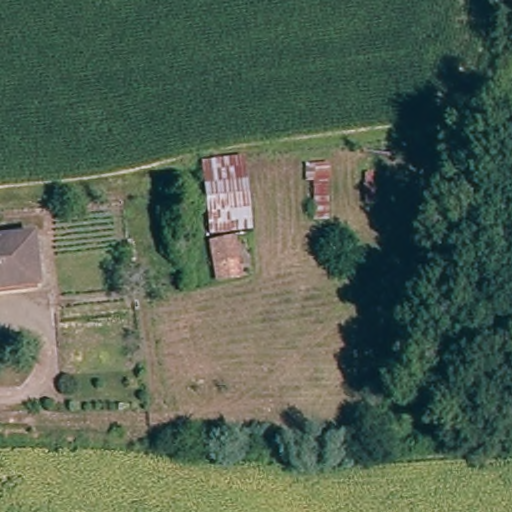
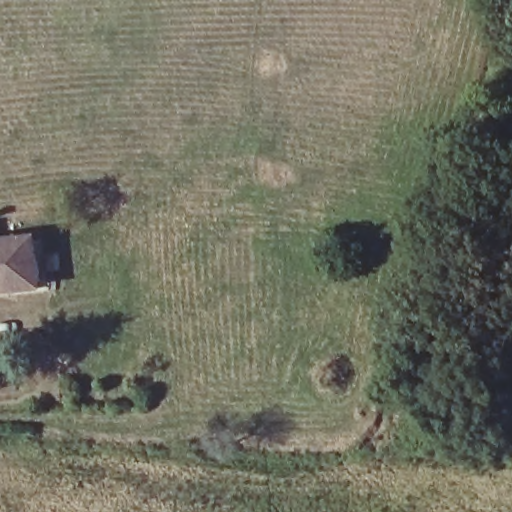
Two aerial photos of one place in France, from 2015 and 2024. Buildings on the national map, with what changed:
demolished [(211,232),(208,211),(193,211),(190,195),(204,190),(202,157),(243,153),(251,227),(211,232)]
unchanged [(237,237),(240,273),(212,275),(209,239),(237,237)]
unchanged [(34,241),(34,285),(0,287),(0,242),(34,241)]

